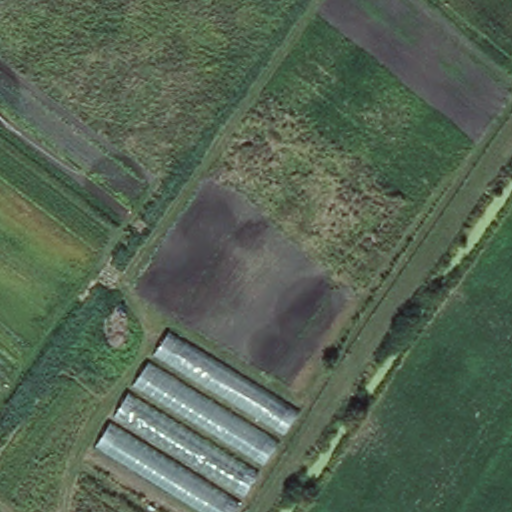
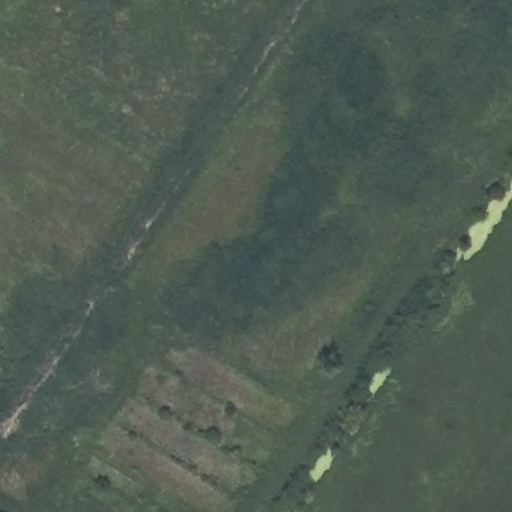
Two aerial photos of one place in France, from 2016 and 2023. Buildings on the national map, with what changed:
demolished [(167,333),(294,416),(232,512),(200,512),(92,447),(167,333)]

